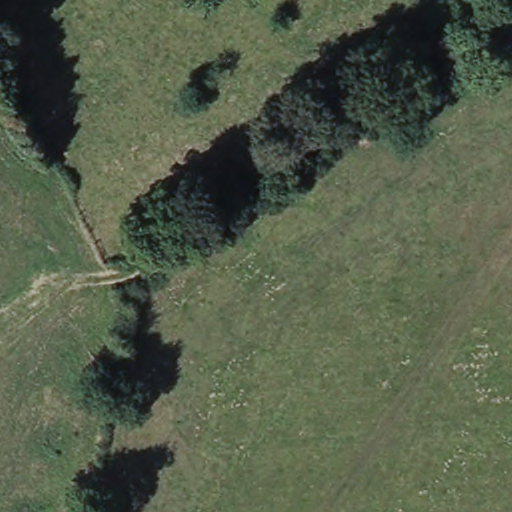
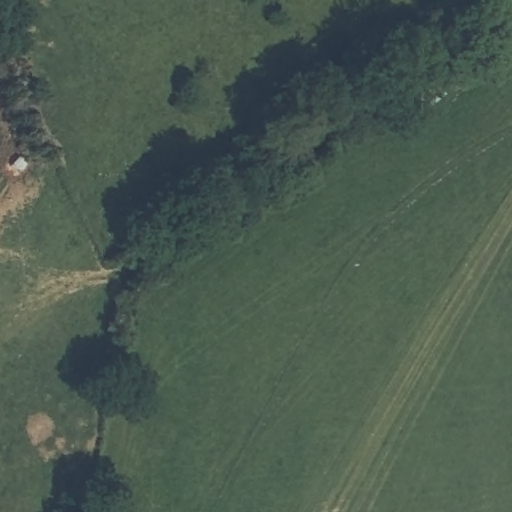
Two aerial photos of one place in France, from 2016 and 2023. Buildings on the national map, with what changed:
unchanged [(418,117),(408,100),(426,82),(438,99),(418,117)]

